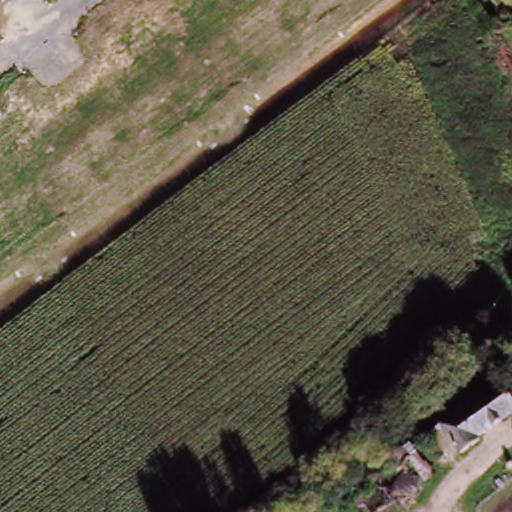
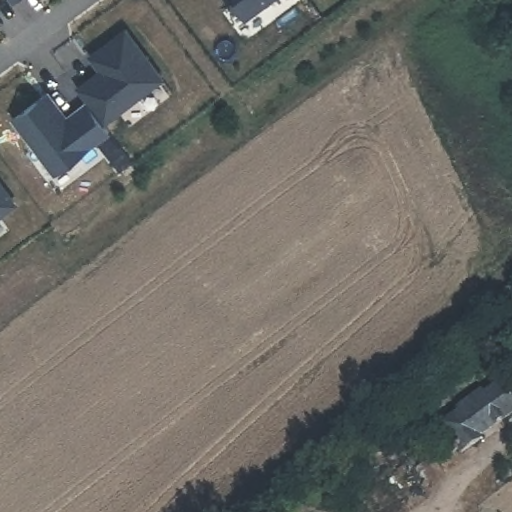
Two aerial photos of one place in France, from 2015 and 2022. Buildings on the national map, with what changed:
new [(247,22),(229,0),(275,0),(247,22)]
new [(102,72),(91,57),(125,32),(160,79),(103,122),(88,102),(78,90),(92,79),(102,72)]
new [(48,94),(70,122),(77,117),(75,113),(88,102),(103,122),(110,131),(56,172),(15,119),(48,94)]
new [(12,201),(0,211),(0,185),(12,201)]
unchanged [(455,450),(445,437),(439,428),(460,414),(456,411),(485,390),(487,393),(498,385),(504,393),(511,403),(512,404),(512,417),(503,423),(480,440),(483,444),(461,459),(455,450)]

